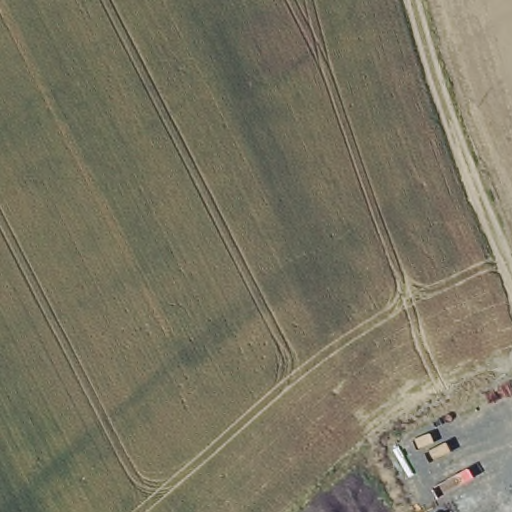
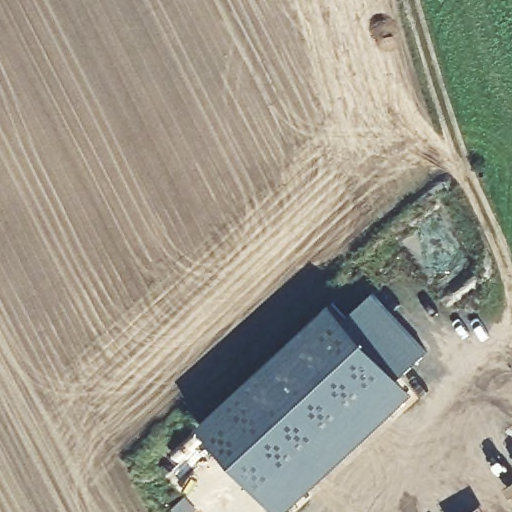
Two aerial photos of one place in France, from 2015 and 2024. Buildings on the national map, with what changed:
new [(201,426),(334,303),(348,318),(366,300),(374,308),(381,302),(428,352),(402,376),(414,390),(284,512),(281,512),(235,463),(201,426)]

